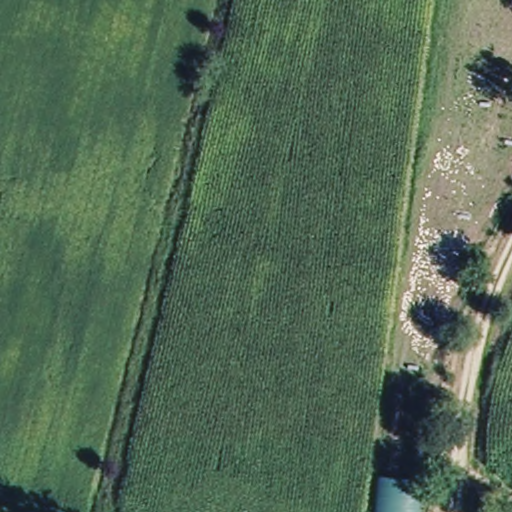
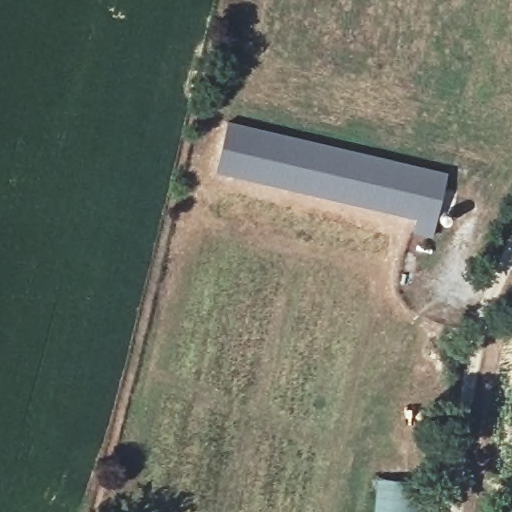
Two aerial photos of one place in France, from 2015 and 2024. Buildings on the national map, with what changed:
new [(447,175),(432,236),(414,231),(417,217),(214,172),(227,120),(447,175)]
unchanged [(421,481),(418,512),(374,512),(378,477),(421,481)]

